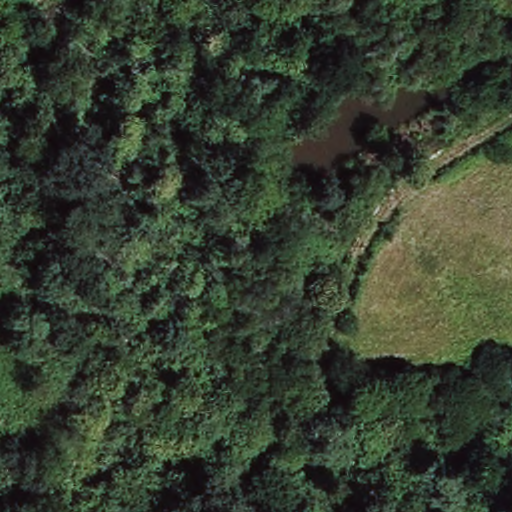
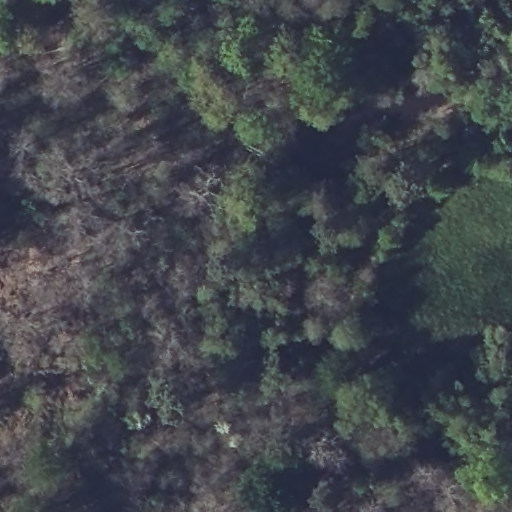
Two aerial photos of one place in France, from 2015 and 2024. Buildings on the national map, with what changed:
[]

